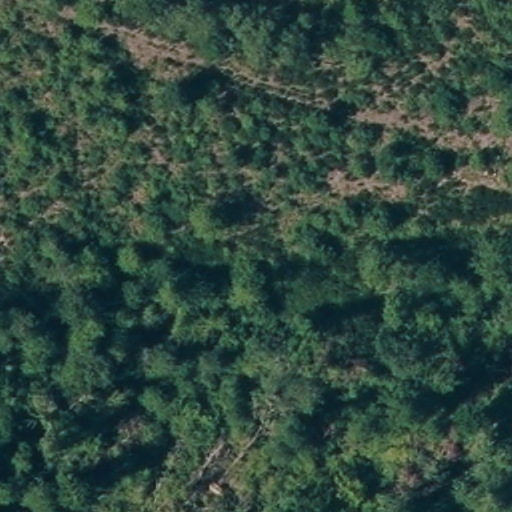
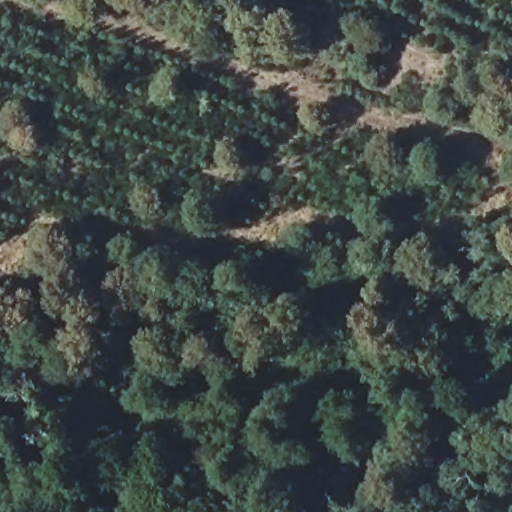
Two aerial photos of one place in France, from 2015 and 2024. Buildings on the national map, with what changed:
[]

